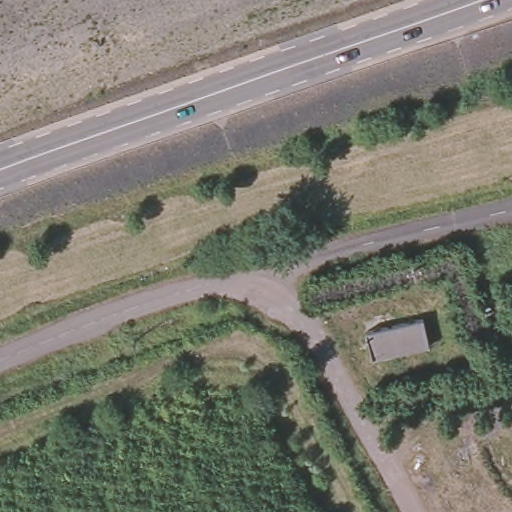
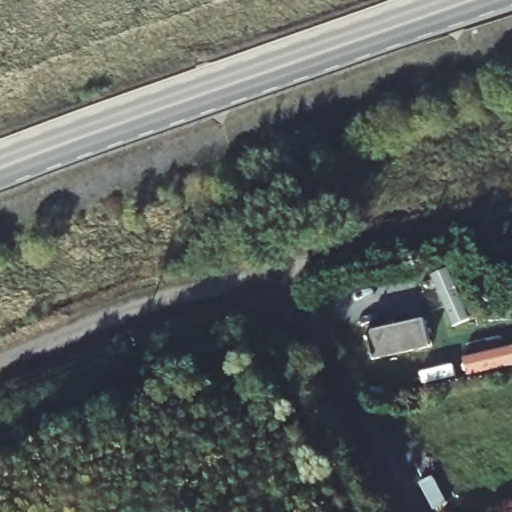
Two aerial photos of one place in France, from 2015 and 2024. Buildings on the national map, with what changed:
unchanged [(427,318),(433,346),(379,359),(373,332),(427,318)]
new [(512,345),(512,364),(466,375),(462,357),(512,345)]

